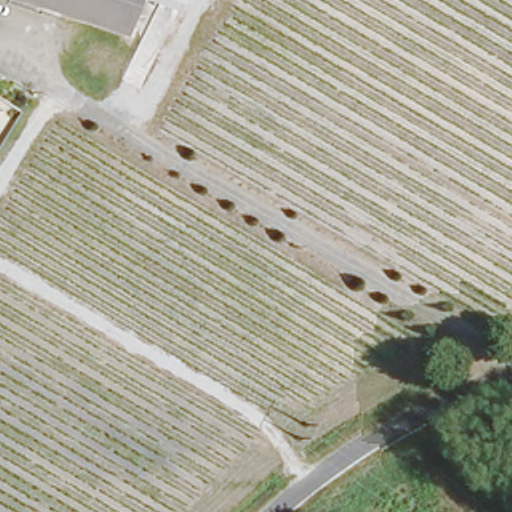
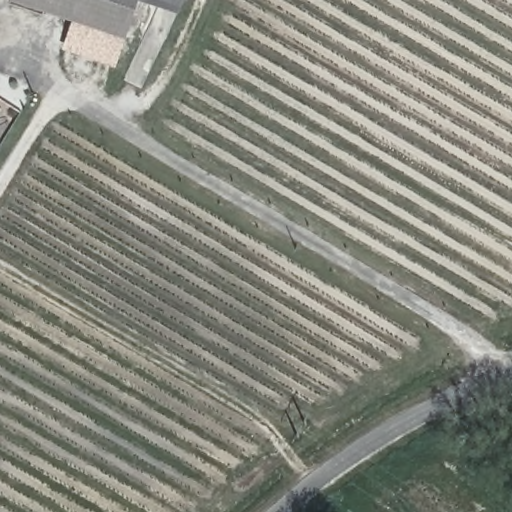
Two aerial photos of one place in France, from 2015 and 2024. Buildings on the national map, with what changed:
unchanged [(126,33),(24,0),(137,0),(126,33)]
new [(179,11),(143,0),(184,0),(179,11)]
new [(126,33),(116,66),(63,48),(74,16),(126,33)]

